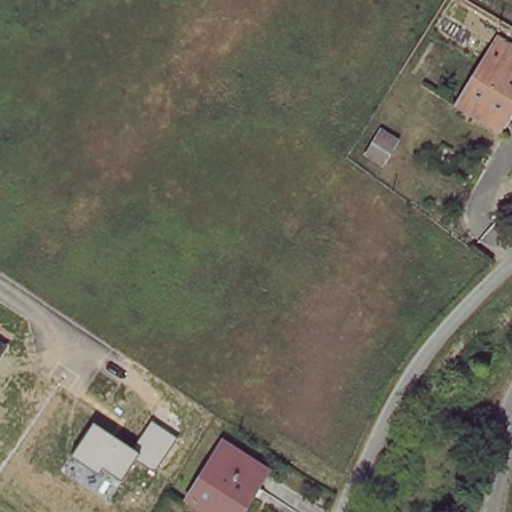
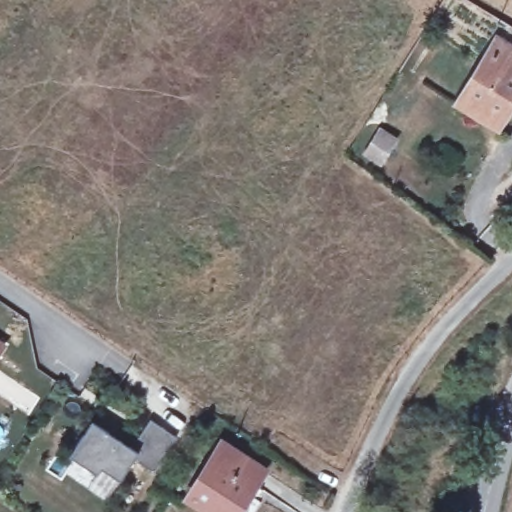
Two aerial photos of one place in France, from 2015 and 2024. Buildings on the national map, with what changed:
unchanged [(497,126),(460,103),(501,39),(512,46),(512,103),(497,126)]
unchanged [(381,162),(369,153),(383,130),(397,138),(381,162)]
unchanged [(0,355),(0,338),(8,343),(0,355)]
unchanged [(93,423),(135,450),(152,420),(176,435),(153,469),(136,458),(123,481),(103,467),(98,473),(70,455),(93,423)]
unchanged [(209,512),(187,498),(224,443),(265,469),(237,512),(209,512)]

